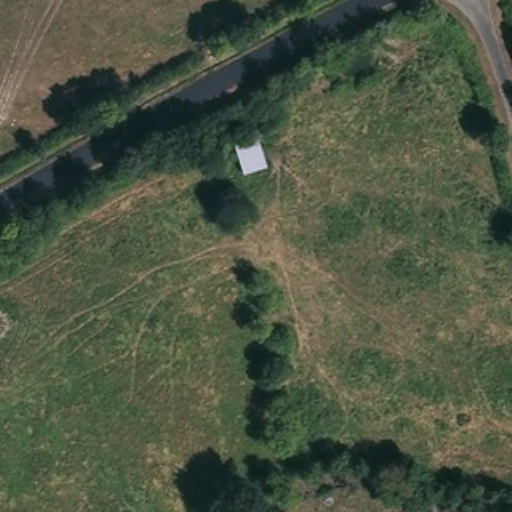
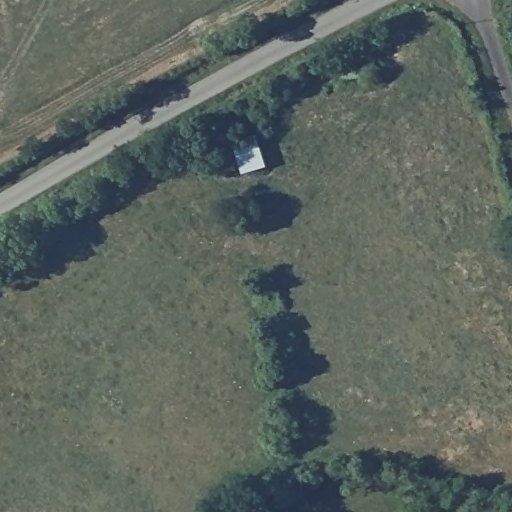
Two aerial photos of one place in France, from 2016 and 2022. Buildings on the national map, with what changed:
unchanged [(257,136),(268,170),(240,177),(231,144),(257,136)]

